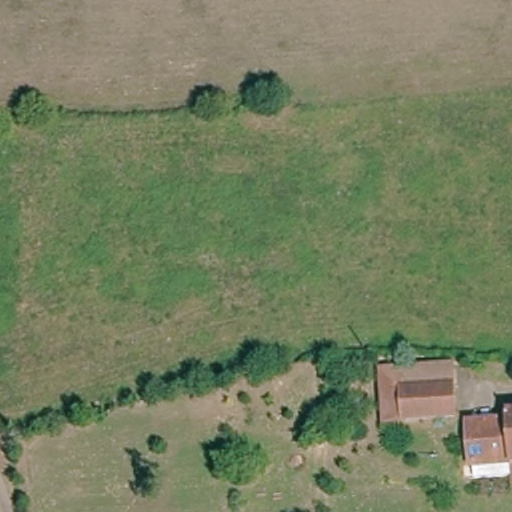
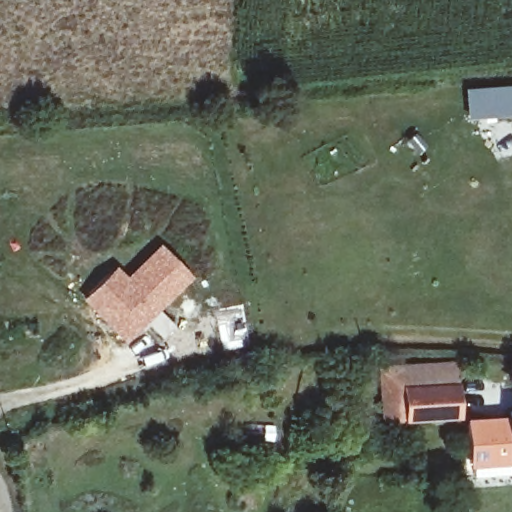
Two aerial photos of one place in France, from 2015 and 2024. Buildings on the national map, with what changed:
new [(465,90),(512,86),(512,115),(467,119),(465,90)]
new [(115,265),(125,274),(160,241),(193,275),(160,310),(177,328),(164,341),(147,325),(126,345),(81,299),(115,265)]
unchanged [(446,366),(446,414),(381,418),(381,368),(446,366)]
unchanged [(327,389),(328,400),(317,401),(316,390),(327,389)]
unchanged [(508,464),(468,467),(467,455),(464,455),(462,412),(504,411),(503,402),(512,402),(512,473),(508,473),(508,464)]

